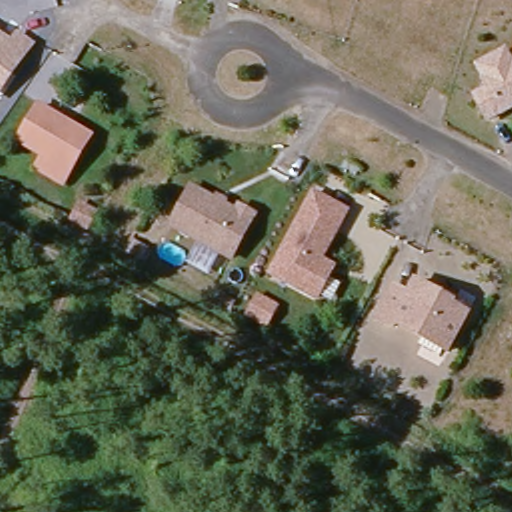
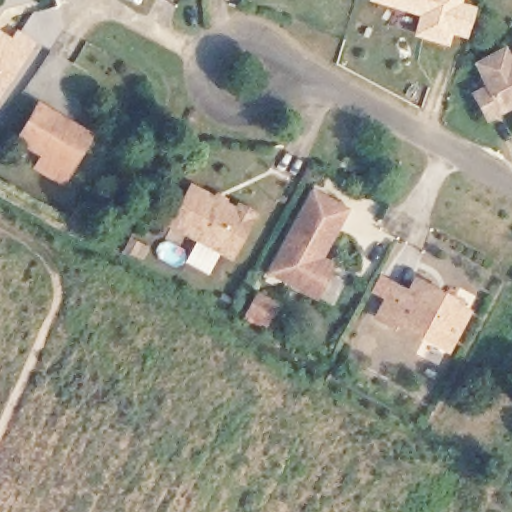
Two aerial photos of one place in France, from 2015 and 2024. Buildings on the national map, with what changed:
new [(475,9),(467,37),(450,32),(447,42),(416,34),(421,16),(371,2),(372,0),(460,0),(459,4),(475,9)]
unchanged [(0,85),(0,34),(11,42),(17,34),(31,44),(2,86),(0,85)]
unchanged [(501,112),(489,118),(476,94),(490,87),(485,78),(486,77),(479,64),(505,50),(512,62),(512,106),(501,112)]
unchanged [(17,137),(40,104),(90,139),(67,171),(58,184),(33,166),(41,154),(17,137)]
unchanged [(322,259),(318,267),(331,273),(318,298),(272,273),(319,186),(352,204),(322,259)]
unchanged [(170,225),(190,187),(235,211),(239,206),(254,214),(251,219),(230,257),(170,225)]
unchanged [(82,237),(66,229),(75,213),(90,222),(82,237)]
unchanged [(395,322),(392,326),(377,318),(392,290),(407,298),(416,281),(433,290),(435,287),(456,298),(453,304),(468,312),(447,351),(395,322)]
unchanged [(281,303),(269,326),(246,314),(258,291),(281,303)]

